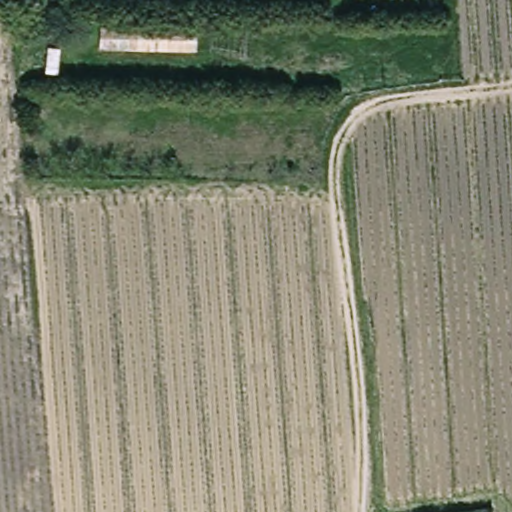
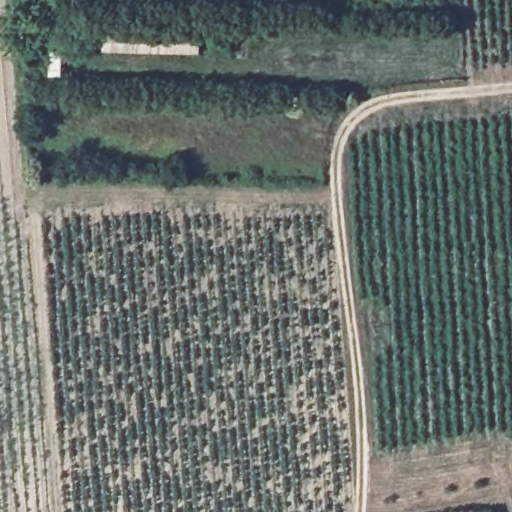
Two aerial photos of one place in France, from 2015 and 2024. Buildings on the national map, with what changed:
unchanged [(105,27),(201,30),(201,53),(103,52),(105,27)]

